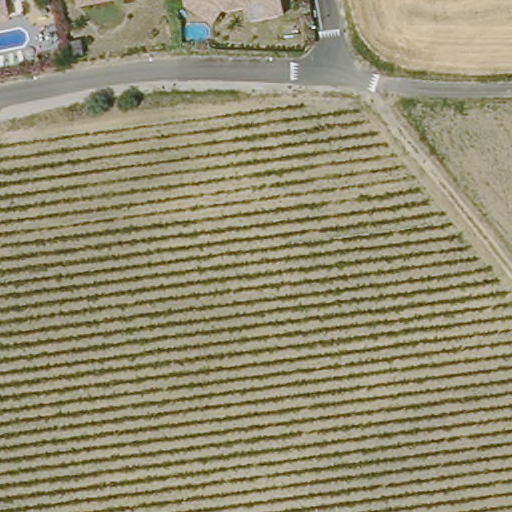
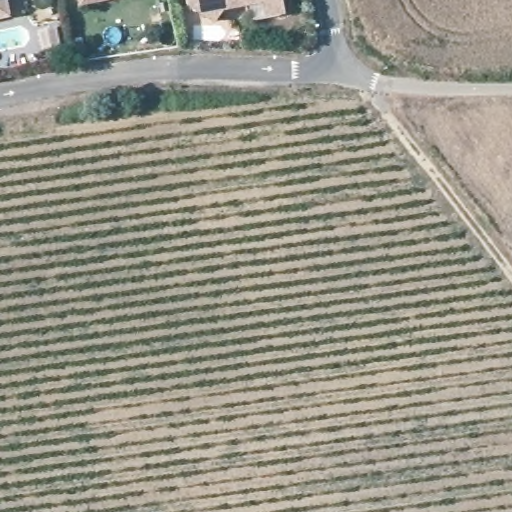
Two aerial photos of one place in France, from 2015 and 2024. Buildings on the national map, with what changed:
unchanged [(0,18),(0,0),(7,0),(11,15),(0,18)]
unchanged [(78,0),(104,0),(79,5),(78,0)]
unchanged [(243,21),(241,6),(219,9),(208,21),(188,1),(188,0),(279,0),(281,15),(262,18),(243,21)]

